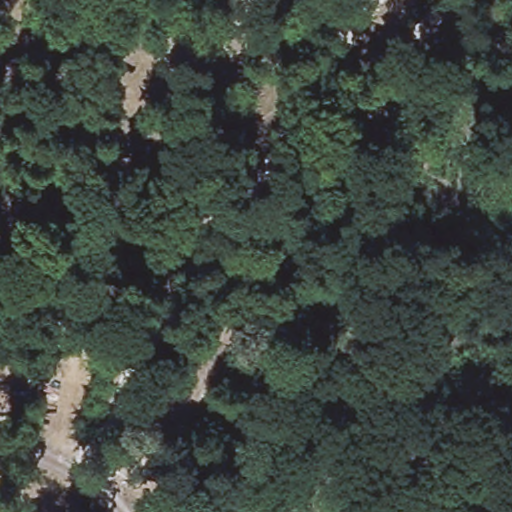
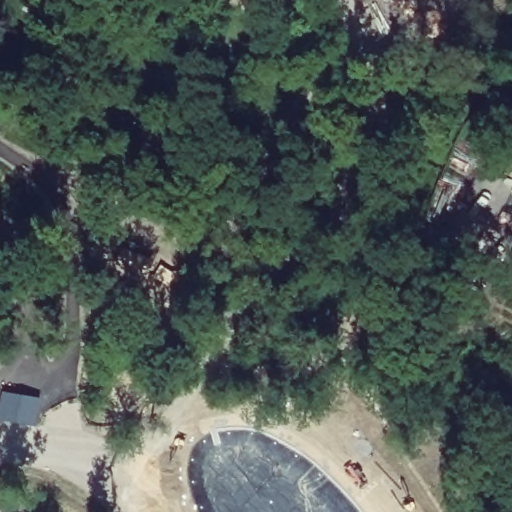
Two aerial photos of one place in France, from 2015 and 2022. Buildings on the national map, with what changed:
new [(37,427),(0,420),(0,411),(3,394),(40,399),(37,427)]

